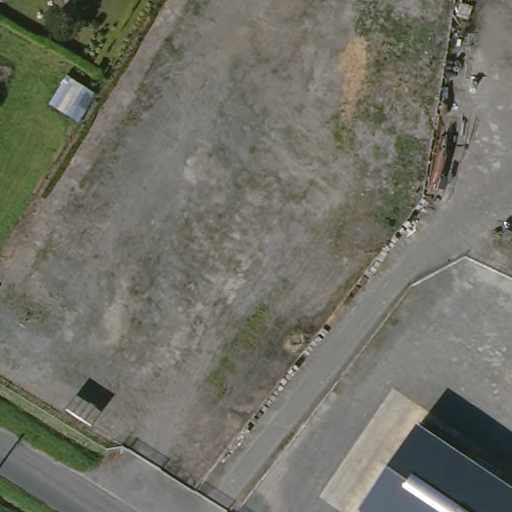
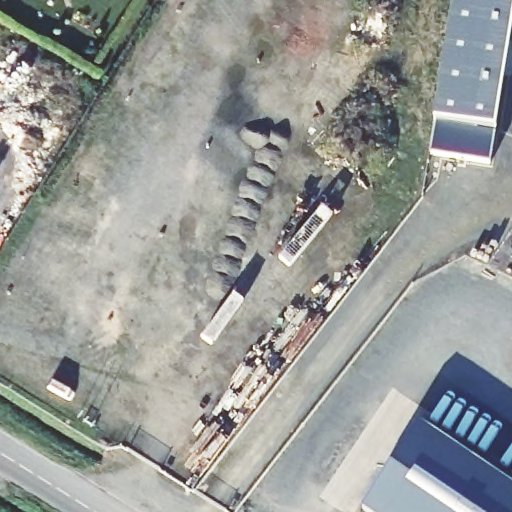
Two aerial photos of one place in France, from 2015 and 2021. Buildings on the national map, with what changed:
new [(437,112),(455,0),(512,0),(512,35),(498,122),(437,112)]
new [(429,159),(437,112),(498,122),(489,169),(429,159)]
demolished [(0,308),(15,291),(73,325),(61,346),(0,311),(0,308)]
unchanged [(363,512),(417,431),(512,493),(512,512),(363,512)]

